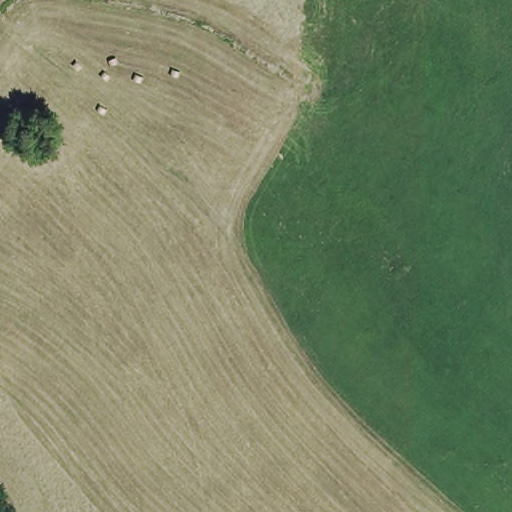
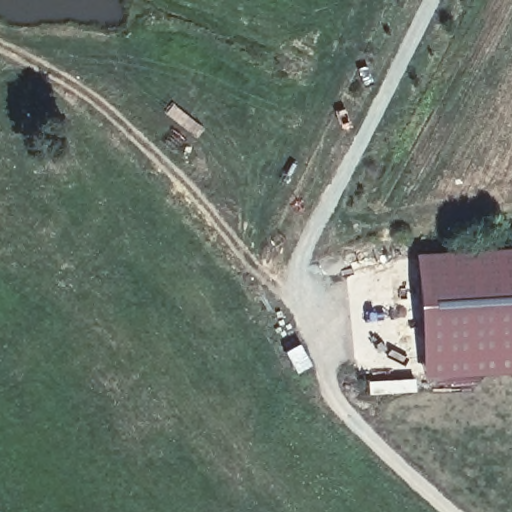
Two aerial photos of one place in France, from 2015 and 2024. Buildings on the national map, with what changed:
new [(512,372),(423,377),(416,254),(512,249),(512,372)]

